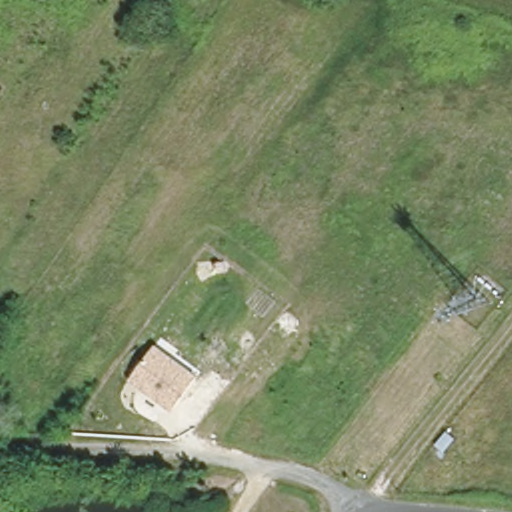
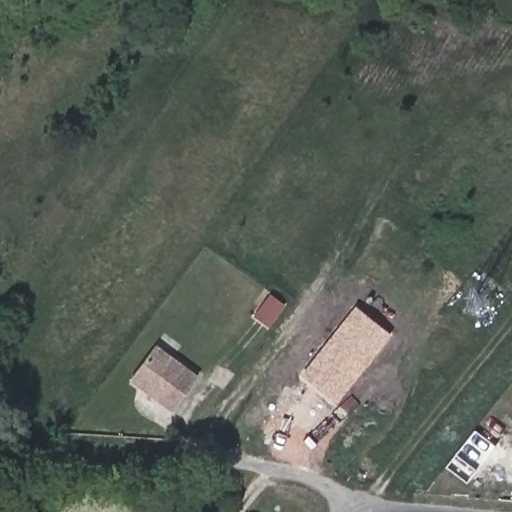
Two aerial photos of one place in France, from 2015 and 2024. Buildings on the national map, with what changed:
new [(355,306),(390,334),(336,402),(300,374),(355,306)]
unchanged [(172,411),(129,380),(155,344),(198,375),(172,411)]
new [(511,406),(512,405),(512,406),(511,406)]
unchanged [(447,454),(435,444),(446,429),(457,438),(447,454)]

